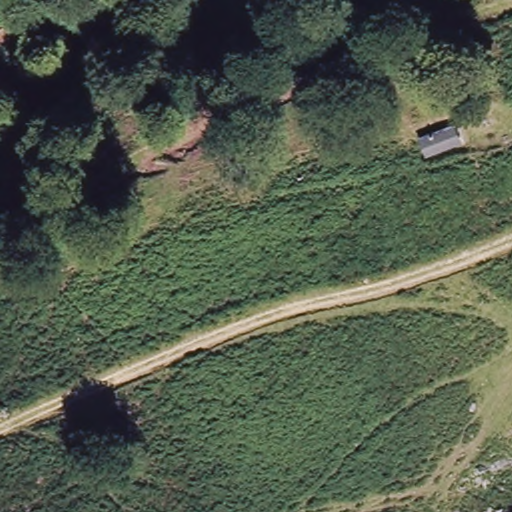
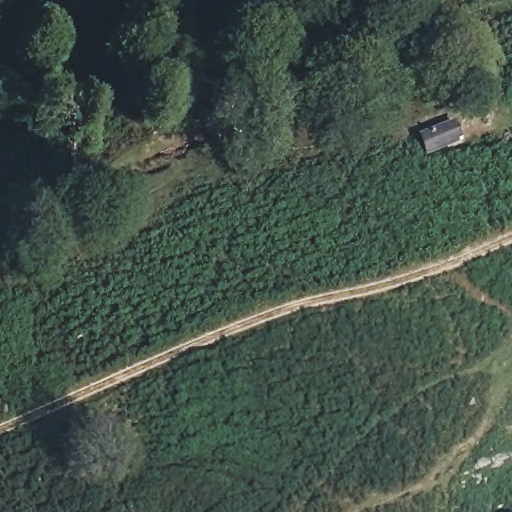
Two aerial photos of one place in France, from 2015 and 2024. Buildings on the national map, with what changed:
unchanged [(454,122),(463,139),(425,150),(416,131),(454,122)]

